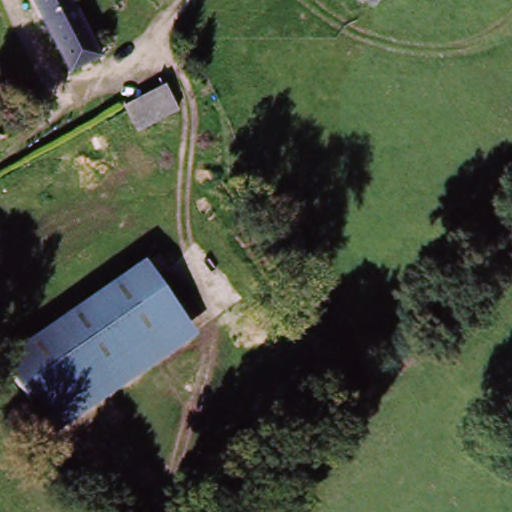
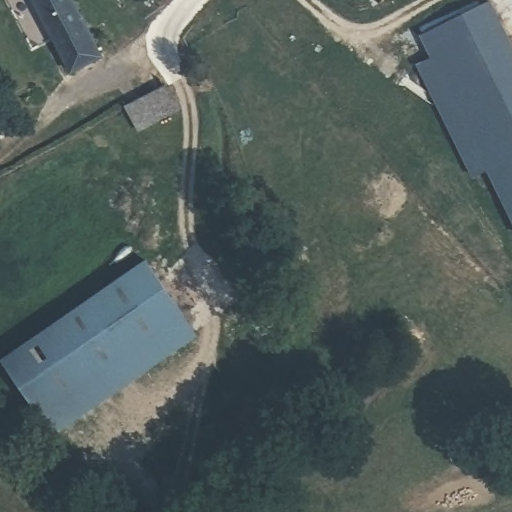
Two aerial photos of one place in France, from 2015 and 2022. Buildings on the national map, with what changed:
unchanged [(68,73),(31,0),(73,0),(101,57),(68,73)]
new [(360,0),(369,0),(362,4),(360,0)]
new [(473,177),(417,66),(432,59),(420,36),(490,1),(512,45),(512,219),(487,170),(473,177)]
unchanged [(161,83),(177,104),(142,130),(126,109),(161,83)]
unchanged [(195,334),(50,434),(0,363),(0,359),(142,260),(195,334)]

